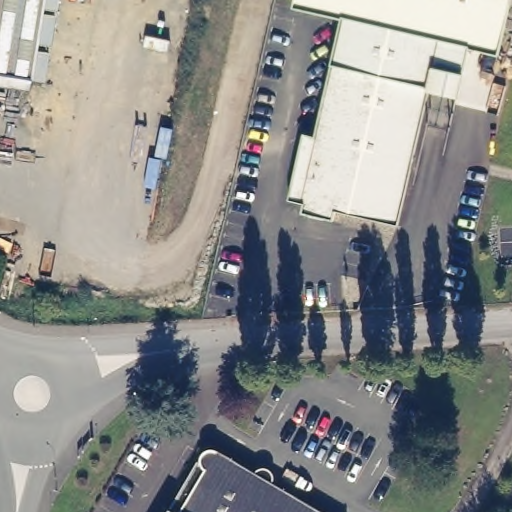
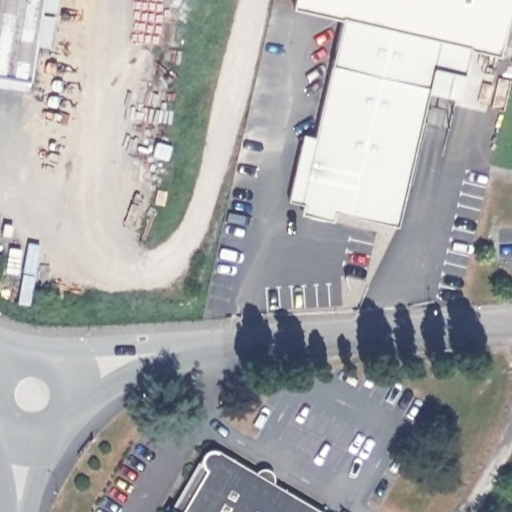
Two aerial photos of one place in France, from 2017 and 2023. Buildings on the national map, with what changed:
unchanged [(21,81),(0,78),(0,0),(35,0),(21,81)]
unchanged [(492,52),(462,45),(456,72),(429,66),(392,223),(330,208),(323,217),(304,212),(297,200),(282,196),(297,131),(310,135),(337,16),(287,4),(287,0),(504,0),(492,52)]
unchanged [(324,512),(178,512),(218,449),(324,512)]

